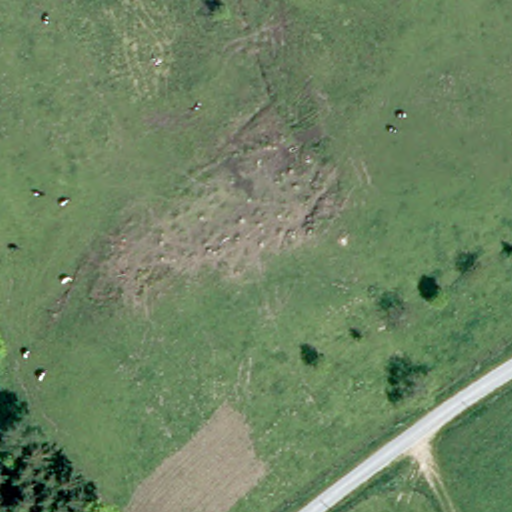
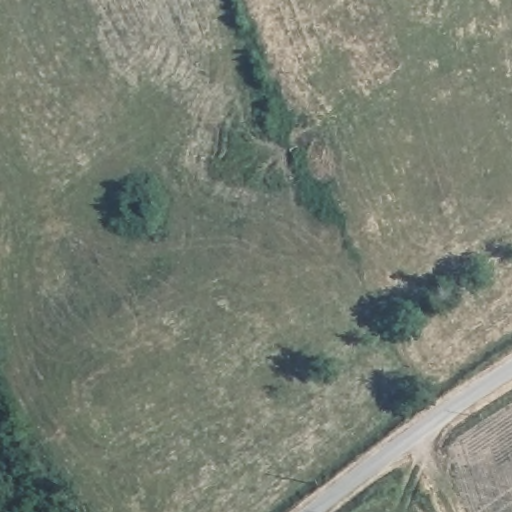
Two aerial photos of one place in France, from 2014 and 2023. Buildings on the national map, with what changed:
[]

